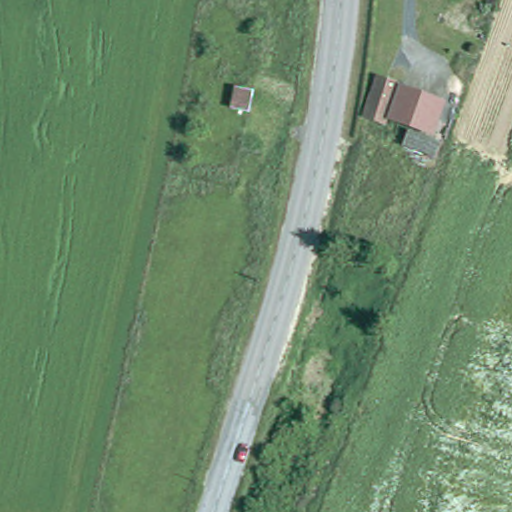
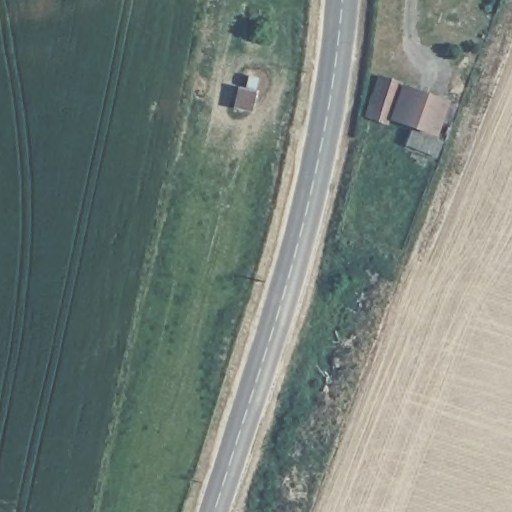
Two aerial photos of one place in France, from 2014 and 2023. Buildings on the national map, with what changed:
unchanged [(394,102),(389,119),(371,113),(382,72),(400,78),(394,102)]
unchanged [(447,91),(437,123),(395,111),(404,79),(447,91)]

